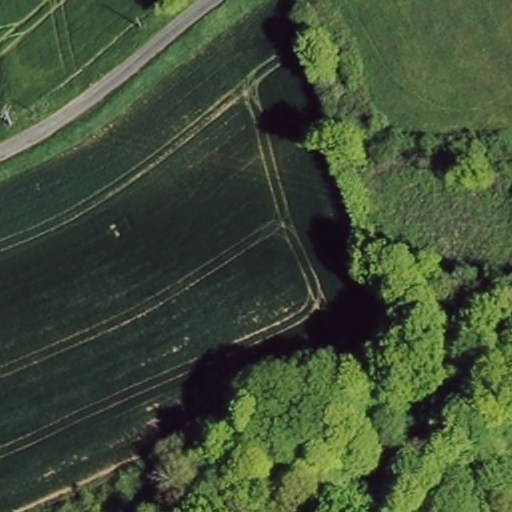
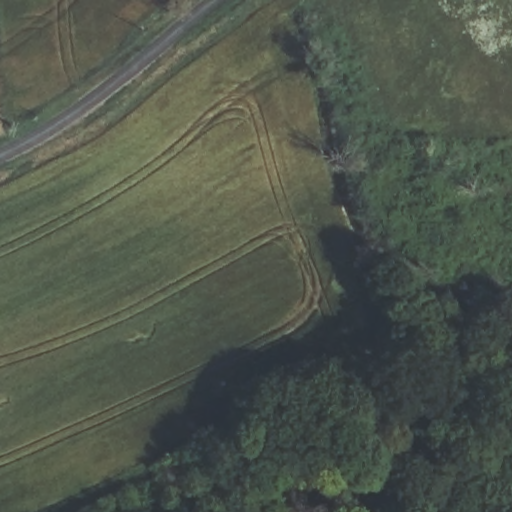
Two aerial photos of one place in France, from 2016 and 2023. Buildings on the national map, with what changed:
[]

